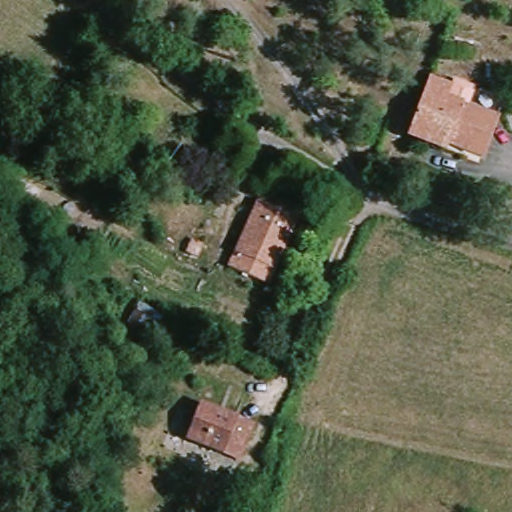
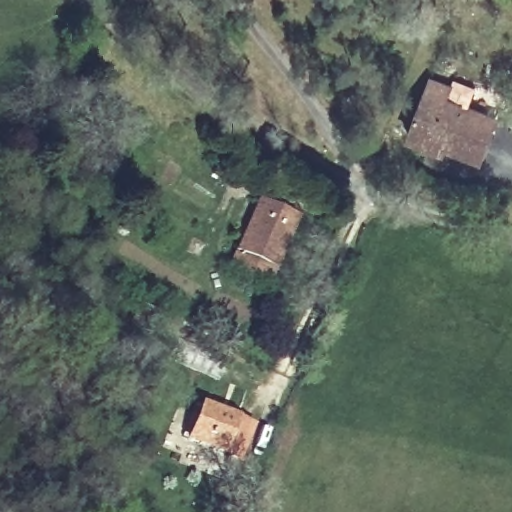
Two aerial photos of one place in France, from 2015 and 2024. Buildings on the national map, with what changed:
unchanged [(407,138),(427,83),(445,89),(447,82),(468,90),(461,109),(489,119),(490,119),(473,162),(407,138)]
unchanged [(230,272),(257,203),(300,221),(271,287),(230,272)]
unchanged [(242,463),(188,443),(202,408),(252,429),(242,463)]

